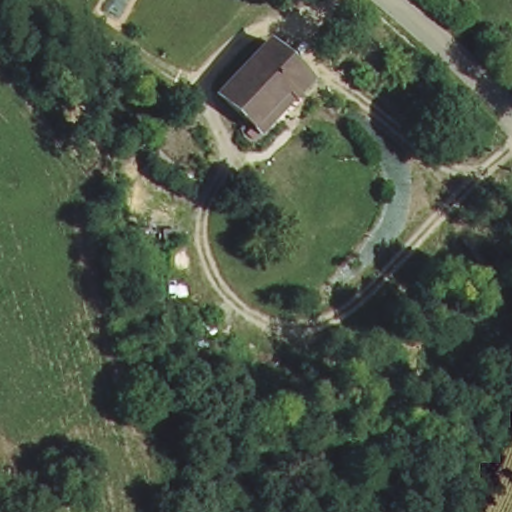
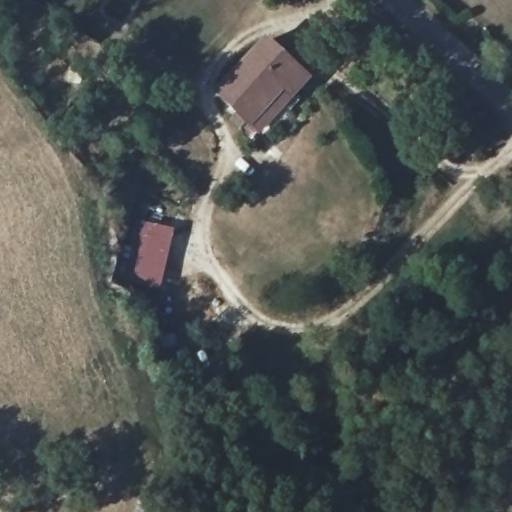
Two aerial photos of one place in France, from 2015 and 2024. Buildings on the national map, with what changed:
unchanged [(309,75),(263,129),(219,94),(266,40),(309,75)]
new [(161,288),(123,279),(136,219),(175,229),(161,288)]

